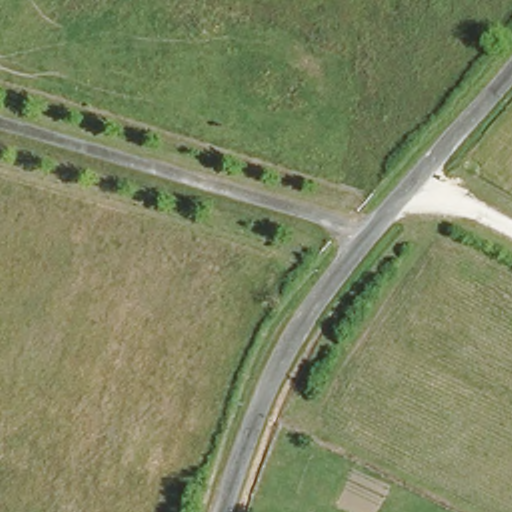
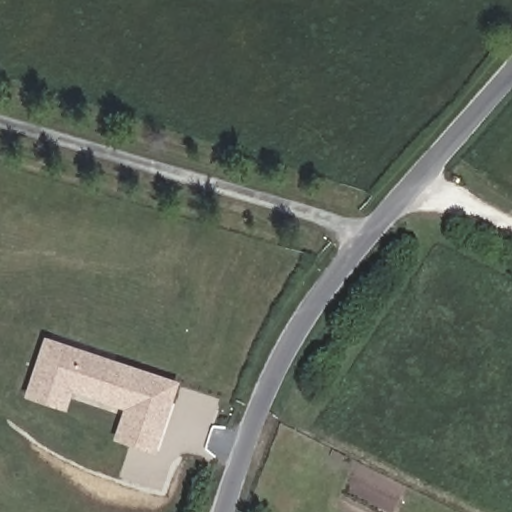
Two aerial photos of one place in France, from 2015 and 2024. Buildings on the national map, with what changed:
new [(123,410),(72,393),(65,411),(23,397),(44,337),(179,382),(155,454),(113,440),(123,410)]

